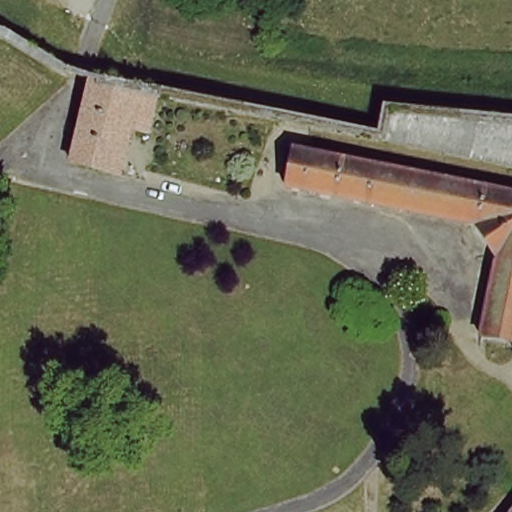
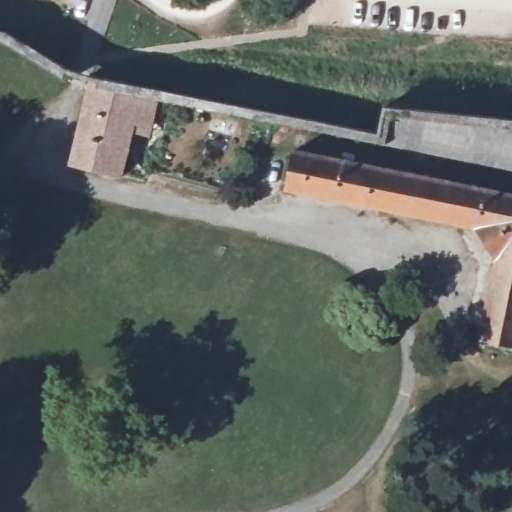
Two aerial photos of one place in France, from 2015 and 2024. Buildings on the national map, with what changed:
unchanged [(73,160),(93,83),(158,95),(152,123),(150,132),(130,128),(119,171),(73,160)]
unchanged [(381,139),(385,105),(512,117),(512,167),(381,139)]
unchanged [(295,149),(512,192),(512,341),(481,335),(484,323),(498,250),(477,223),(463,220),(286,185),(295,149)]

